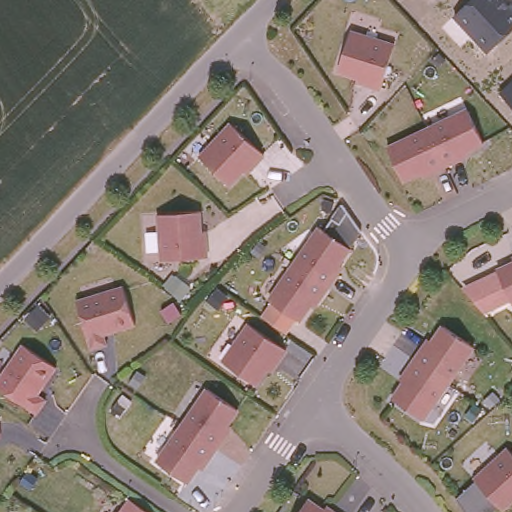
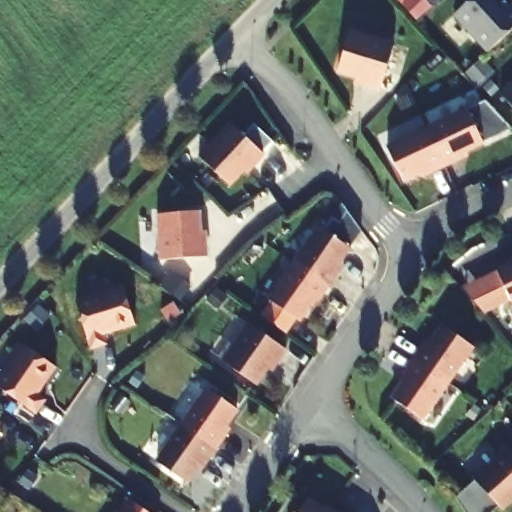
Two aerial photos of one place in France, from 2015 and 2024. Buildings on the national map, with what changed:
unchanged [(505,7),(511,1),(512,2),(512,30),(486,53),(452,16),(470,0),(499,0),(505,7)]
unchanged [(395,44),(380,88),(365,83),(366,78),(338,69),(350,30),(395,44)]
unchanged [(498,90),(512,78),(512,106),(498,90)]
unchanged [(467,110),(483,143),(456,155),(459,160),(445,167),(427,129),(467,110)]
unchanged [(263,155),(251,166),(248,163),(227,185),(196,155),(229,122),(263,155)]
unchanged [(445,167),(430,174),(428,169),(402,181),(386,148),(427,129),(445,167)]
unchanged [(198,241),(204,241),(205,257),(190,258),(159,260),(156,221),(155,214),(196,211),(198,241)]
unchanged [(350,248),(333,272),(337,275),(328,288),(313,278),(294,264),(319,227),(350,248)]
unchanged [(510,300),(496,271),(512,263),(512,304),(510,300)]
unchanged [(313,278),(328,288),(321,299),(320,301),(315,298),(298,322),(268,301),(292,267),(294,264),(313,278)]
unchanged [(510,300),(475,314),(455,287),(496,271),(510,300)]
unchanged [(115,288),(122,286),(127,302),(135,326),(103,336),(106,346),(91,351),(75,300),(115,288)]
unchanged [(255,331),(286,352),(281,359),(277,365),(273,362),(256,385),(222,361),(247,325),(255,331)]
unchanged [(472,347),(467,354),(447,383),(412,359),(421,346),(426,350),(442,327),(442,326),(472,347)]
unchanged [(38,396),(46,402),(37,415),(19,402),(0,388),(0,376),(21,344),(57,369),(38,396)]
unchanged [(408,375),(403,372),(412,359),(447,383),(426,414),(422,420),(391,399),(400,386),(408,375)]
unchanged [(237,410),(232,417),(220,433),(225,437),(216,449),(209,445),(181,425),(206,389),(207,389),(237,410)]
unchanged [(209,445),(216,449),(207,462),(202,459),(186,483),(156,462),(181,425),(209,445)]
unchanged [(512,454),(512,497),(507,502),(500,509),(472,479),(480,472),(506,448),(512,454)]
unchanged [(326,512),(298,512),(307,499),(326,512)]
unchanged [(335,512),(333,512),(334,511),(335,512)]

